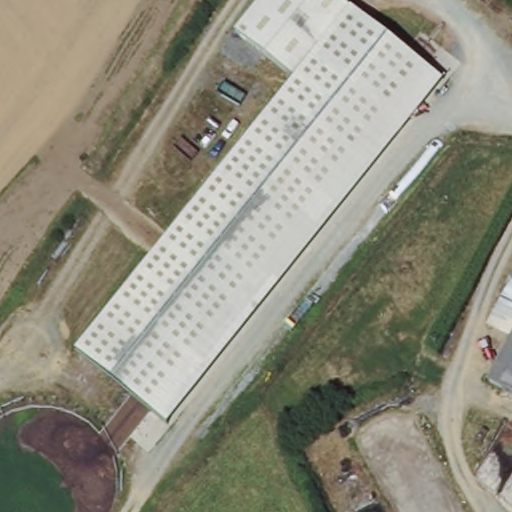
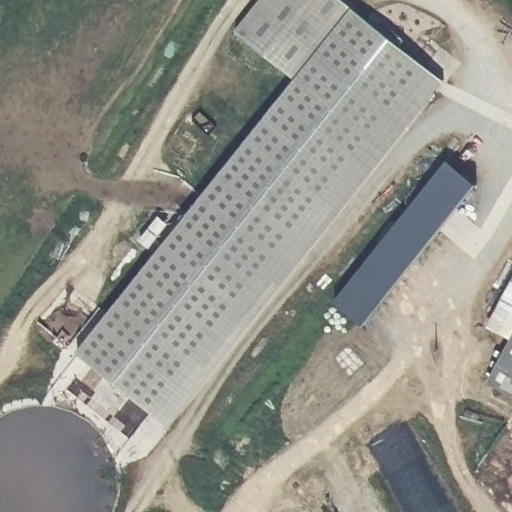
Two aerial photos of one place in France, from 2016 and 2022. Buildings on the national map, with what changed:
unchanged [(447,80),(171,425),(81,351),(297,78),(237,31),(261,0),(348,0),(354,5),(447,80)]
new [(336,301),(446,161),(477,184),(365,324),(336,301)]
new [(512,279),(512,340),(487,328),(512,279)]
unchanged [(512,343),(512,393),(491,382),(512,343)]

